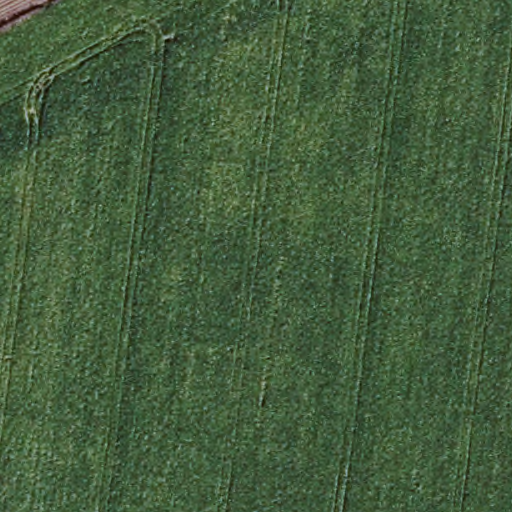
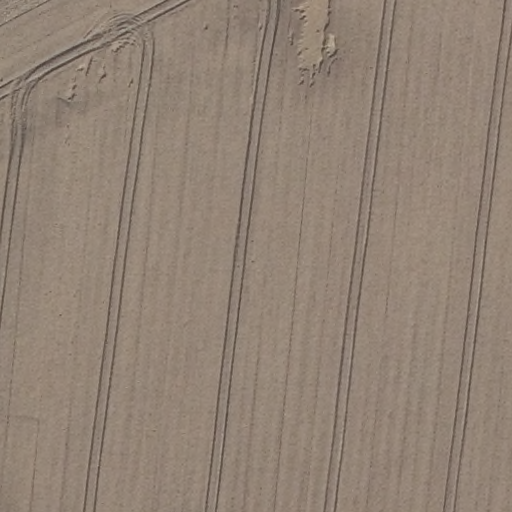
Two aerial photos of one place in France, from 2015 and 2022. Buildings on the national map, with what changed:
[]

